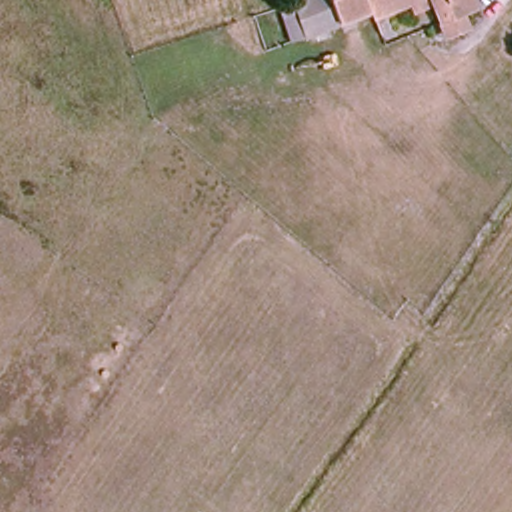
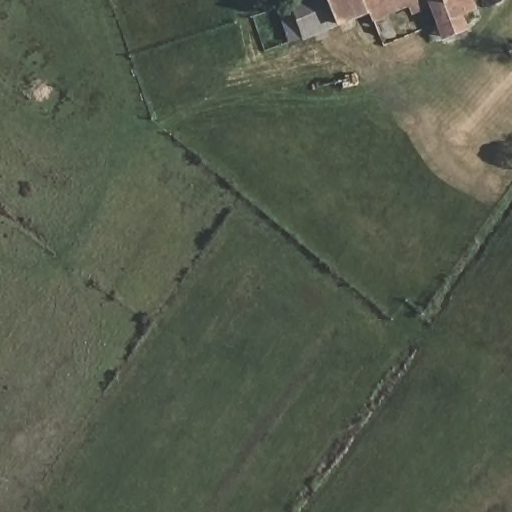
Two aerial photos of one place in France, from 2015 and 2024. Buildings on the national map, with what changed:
unchanged [(446,24),(436,3),(379,26),(372,14),(309,41),(290,0),(477,0),(482,11),(464,13),(470,26),(452,35),(446,24)]

